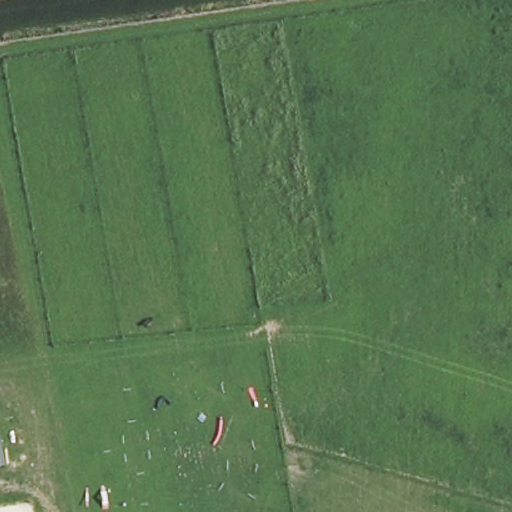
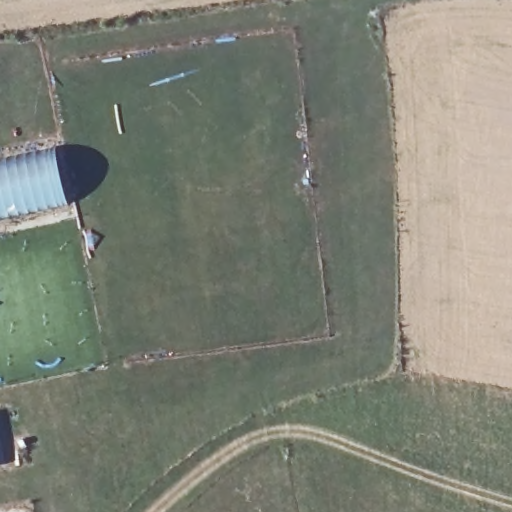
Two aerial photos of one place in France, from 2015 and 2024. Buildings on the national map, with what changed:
new [(58,149),(69,205),(0,220),(0,161),(58,149)]
new [(3,466),(0,467),(0,451),(3,466)]

